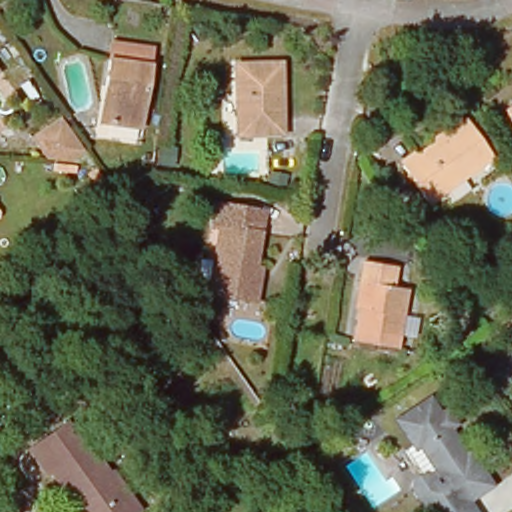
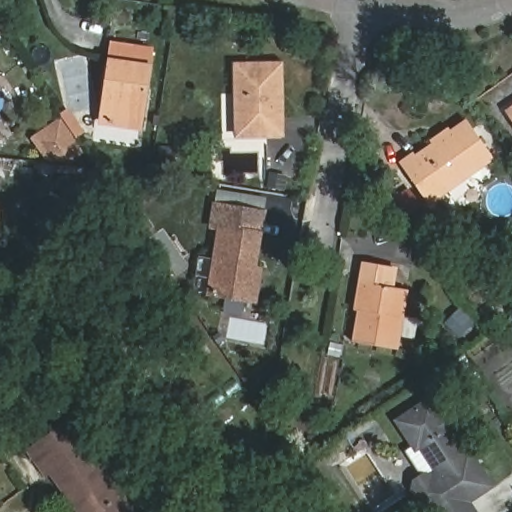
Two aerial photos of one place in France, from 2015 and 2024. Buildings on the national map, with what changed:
unchanged [(107,83),(112,46),(149,52),(138,126),(111,121),(101,120),(107,83)]
unchanged [(237,133),(235,66),(279,65),(283,133),(237,133)]
unchanged [(507,114),(512,111),(512,121),(507,114)]
unchanged [(84,154),(53,174),(32,141),(60,120),(84,154)]
unchanged [(428,205),(398,163),(412,152),(416,157),(432,145),(428,140),(445,128),(449,133),(465,121),(492,159),(428,205)]
unchanged [(269,173),(286,176),(284,189),(266,186),(269,173)]
unchanged [(68,221),(59,209),(75,197),(84,208),(68,221)]
unchanged [(254,267),(261,267),(255,304),(208,294),(219,231),(209,229),(214,204),(264,213),(254,267)]
unchanged [(359,345),(364,316),(360,316),(367,267),(399,272),(396,292),(409,294),(400,352),(359,345)]
unchanged [(438,414),(447,427),(464,452),(467,450),(490,484),(466,500),(474,512),(427,512),(412,489),(413,481),(421,476),(404,450),(412,445),(396,420),(428,399),(438,414)]
unchanged [(133,512),(80,512),(53,473),(49,476),(30,449),(66,424),(102,476),(111,470),(138,508),(133,512)]

